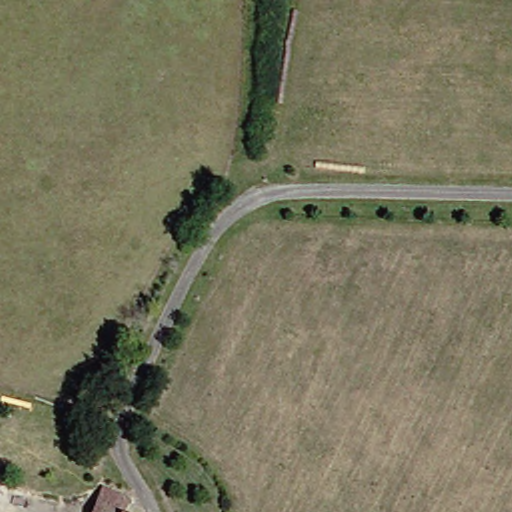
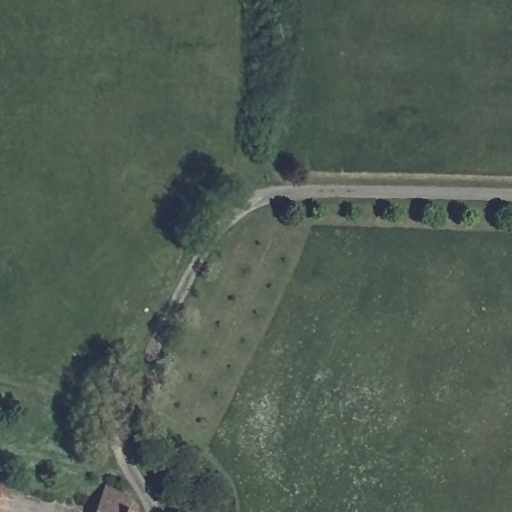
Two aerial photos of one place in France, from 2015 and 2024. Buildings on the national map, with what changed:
unchanged [(143,500),(139,512),(104,512),(115,486),(143,500)]

